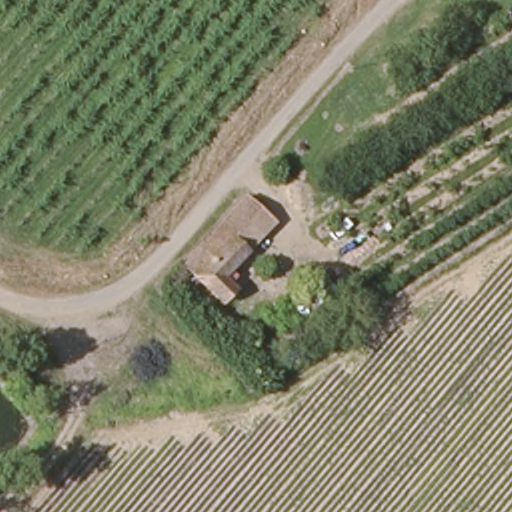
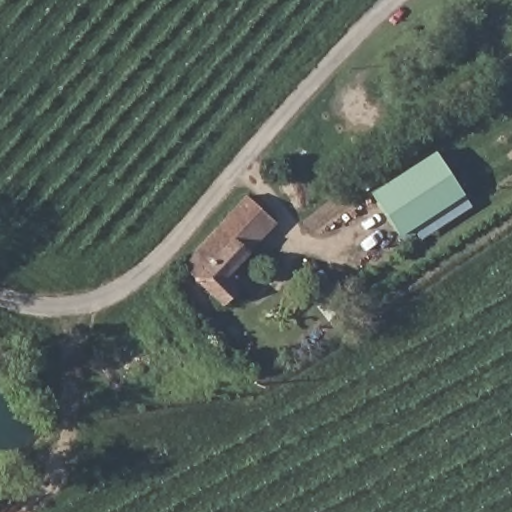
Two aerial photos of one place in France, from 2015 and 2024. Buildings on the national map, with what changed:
new [(396,236),(371,191),(434,150),(463,195),(396,236)]
unchanged [(236,288),(224,299),(185,263),(221,223),(245,196),(263,213),(276,224),(251,253),(227,278),(236,288)]

